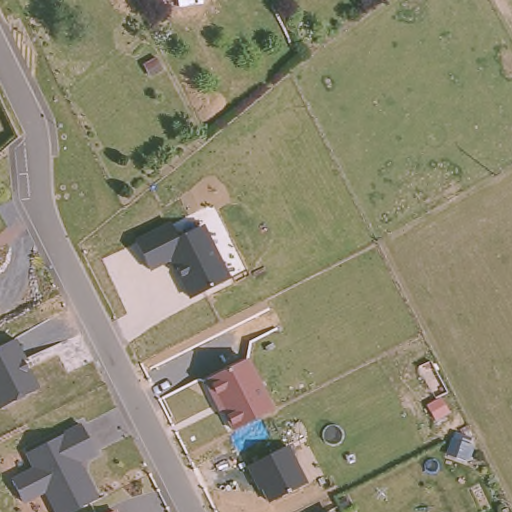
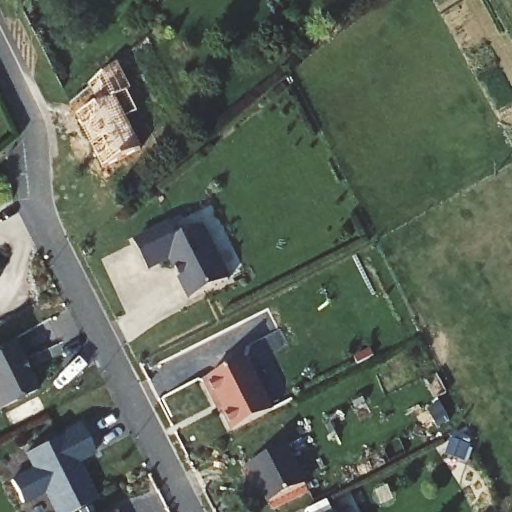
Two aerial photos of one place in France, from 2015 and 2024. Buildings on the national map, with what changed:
new [(141,147),(102,167),(77,116),(99,105),(90,85),(116,63),(130,89),(126,91),(136,112),(125,118),(141,147)]
unchanged [(230,280),(190,300),(171,262),(151,272),(135,241),(166,225),(178,237),(204,224),(230,280)]
unchanged [(41,389),(0,410),(0,348),(16,339),(41,389)]
unchanged [(274,409),(228,433),(203,382),(248,359),(274,409)]
unchanged [(83,424),(98,456),(83,463),(100,498),(74,512),(52,512),(44,494),(23,504),(10,479),(31,469),(24,454),(83,424)]
unchanged [(307,482),(268,502),(260,487),(255,490),(245,468),(290,446),(307,482)]
unchanged [(112,507),(115,512),(103,512),(112,507)]

